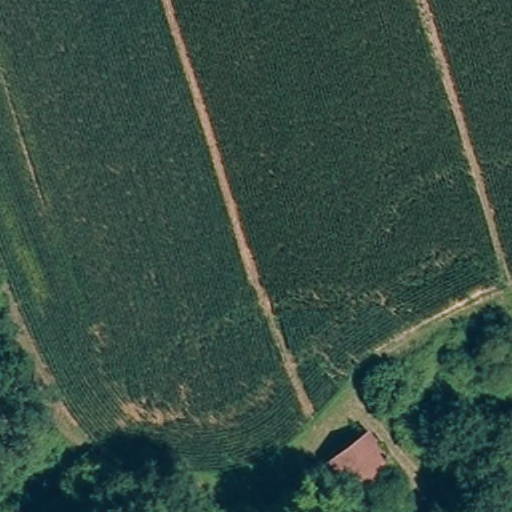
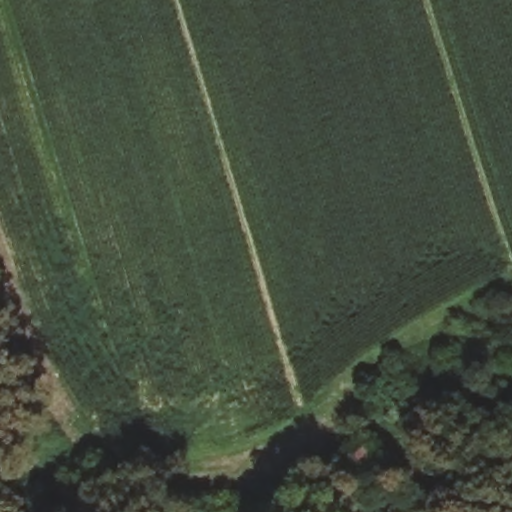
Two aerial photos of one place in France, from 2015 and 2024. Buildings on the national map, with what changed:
unchanged [(386,465),(343,491),(318,456),(362,431),(386,465)]

